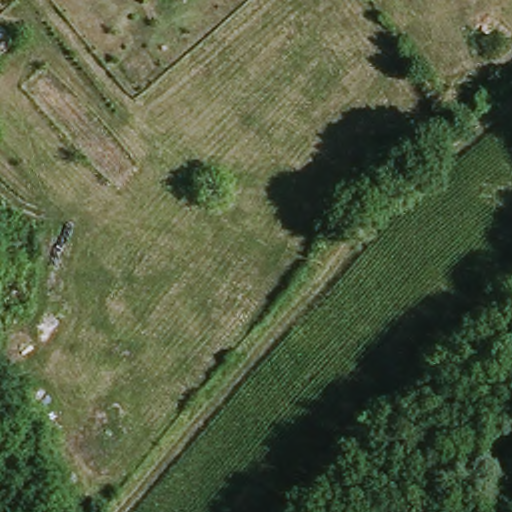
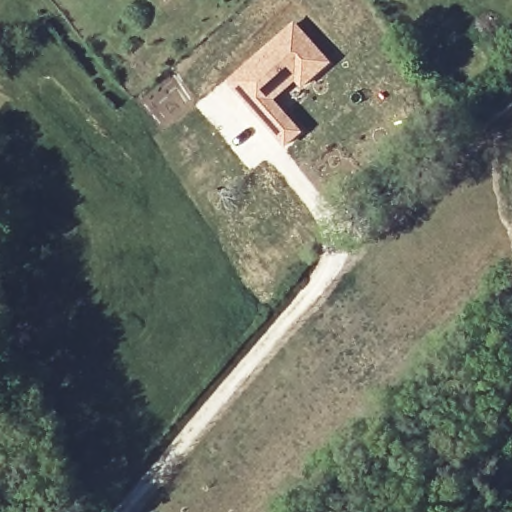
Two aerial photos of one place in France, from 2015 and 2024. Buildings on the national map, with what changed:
new [(293,19),(332,62),(302,89),(295,82),(276,100),(303,132),(286,148),(226,80),(293,19)]

